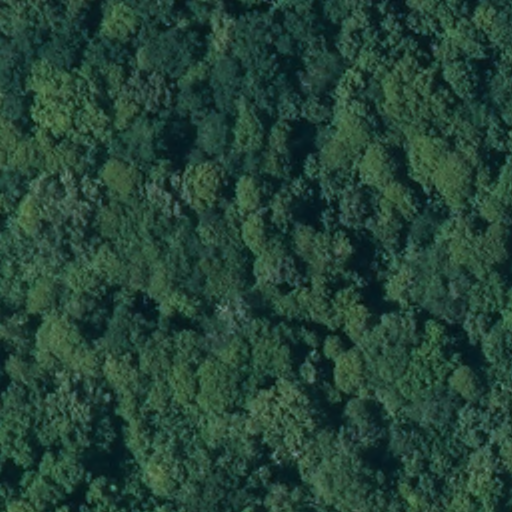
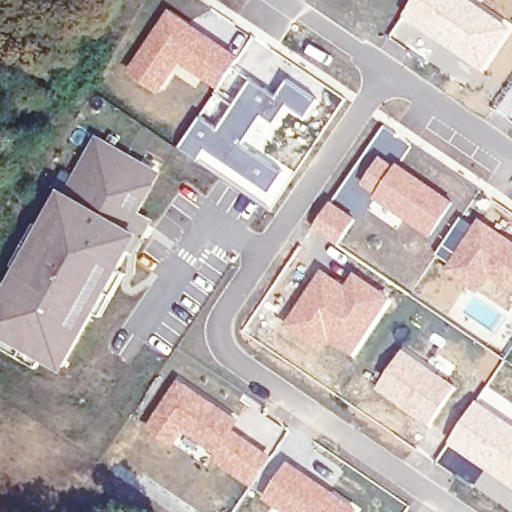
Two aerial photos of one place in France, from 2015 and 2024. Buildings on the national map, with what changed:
new [(480,4),(512,25),(512,30),(482,73),(400,17),(411,0),(483,0),(480,4)]
new [(168,8),(239,57),(216,91),(180,64),(158,94),(124,71),(168,8)]
new [(200,113),(216,125),(249,76),(275,94),(288,77),(318,98),(303,118),(287,106),(272,124),(262,117),(245,139),(292,172),(268,208),(227,180),(176,147),(200,113)]
new [(381,125),(411,144),(398,161),(394,165),(378,154),(362,176),(356,174),(352,177),(348,174),(381,125)]
new [(61,188),(98,137),(162,174),(142,211),(154,219),(140,234),(61,372),(0,334),(0,293),(61,188)]
new [(411,144),(479,190),(462,213),(452,206),(454,202),(398,161),(411,144)]
new [(362,176),(378,154),(394,165),(398,161),(454,202),(452,206),(428,237),(388,210),(357,182),(362,176)]
new [(330,201),(355,218),(336,245),(312,228),(330,201)]
new [(460,216),(473,224),(478,216),(512,239),(512,305),(507,312),(443,268),(446,263),(434,254),(460,216)]
new [(321,268),(344,283),(354,270),(393,297),(353,357),(328,341),(320,352),(283,327),(321,268)]
new [(402,347),(456,386),(428,428),(374,390),(402,347)]
new [(178,377),(239,421),(234,428),(271,456),(248,487),(221,467),(181,433),(172,446),(145,427),(178,377)]
new [(512,403),(512,489),(445,444),(476,398),(486,385),(512,403)]
new [(361,509),(359,512),(280,512),(261,498),(285,458),(361,509)]

